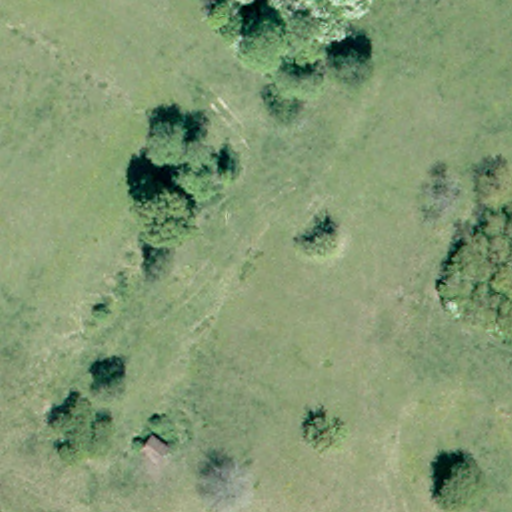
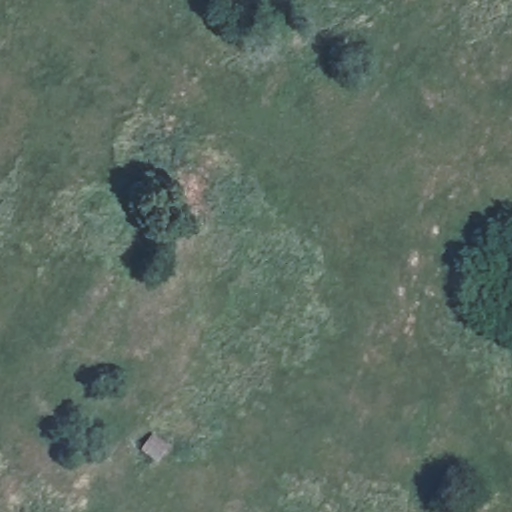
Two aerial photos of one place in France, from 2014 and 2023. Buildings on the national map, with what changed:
unchanged [(157,462),(143,450),(155,435),(170,447),(157,462)]

